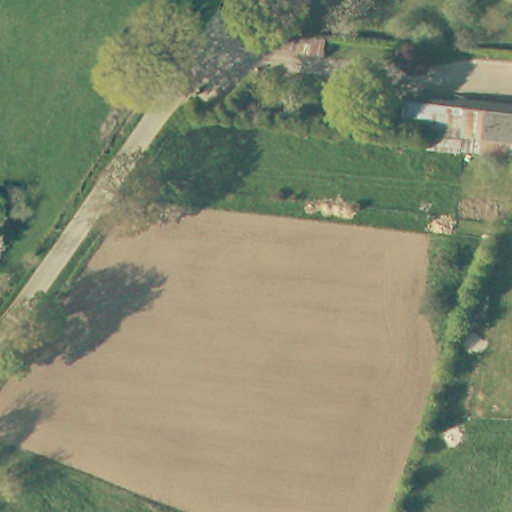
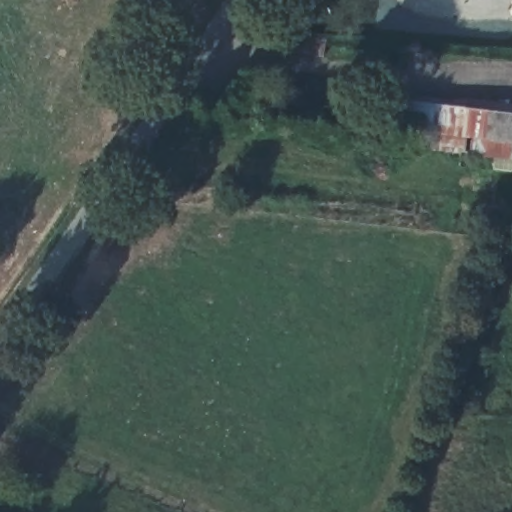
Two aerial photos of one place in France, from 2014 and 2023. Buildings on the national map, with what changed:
unchanged [(450,152),(452,134),(401,130),(406,99),(490,110),(489,99),(512,101),(512,161),(450,152)]

